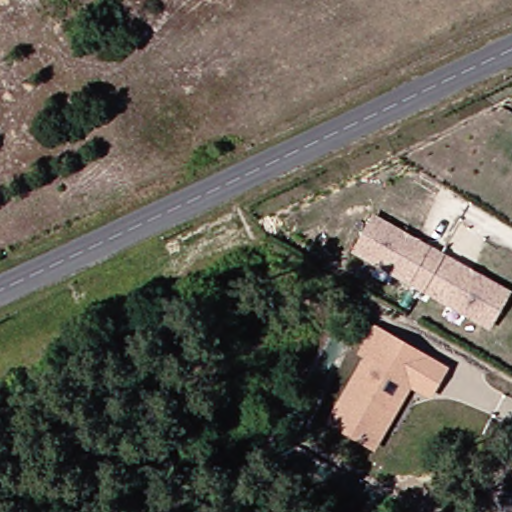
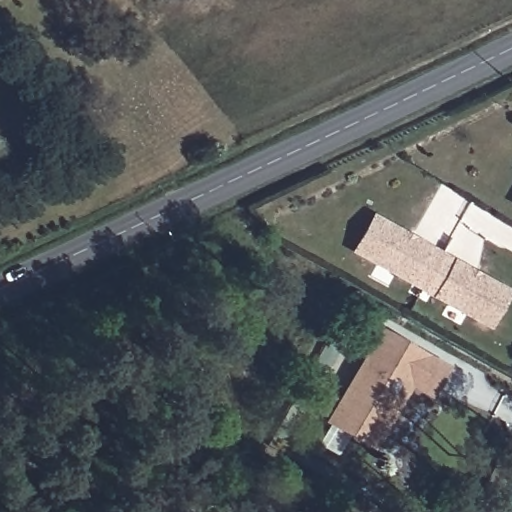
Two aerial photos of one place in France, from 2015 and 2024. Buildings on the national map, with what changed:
unchanged [(354,250),(373,217),(440,254),(422,288),(354,250)]
unchanged [(508,293),(489,326),(422,288),(440,254),(508,293)]
unchanged [(374,360),(366,356),(379,333),(387,338),(428,362),(449,374),(434,399),(413,387),(376,450),(335,426),(374,360)]

